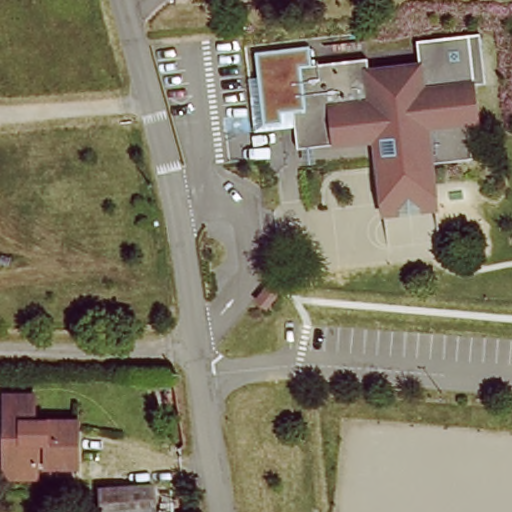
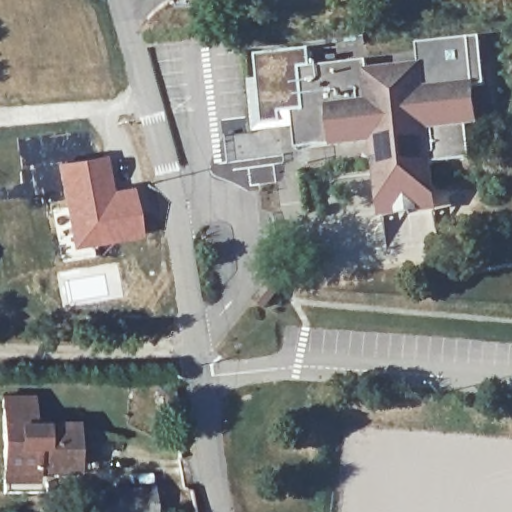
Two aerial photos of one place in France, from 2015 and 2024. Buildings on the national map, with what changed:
unchanged [(375,141),(297,150),(293,112),(305,111),(299,68),(366,60),(368,72),(419,66),(416,42),(479,35),(485,84),(472,85),(477,122),(467,123),(472,159),(431,164),(431,169),(379,175),(375,141)]
new [(108,154),(114,188),(134,185),(142,236),(72,249),(56,161),(108,154)]
new [(275,162),(279,183),(251,186),(247,166),(275,162)]
unchanged [(431,169),(436,210),(384,216),(379,175),(431,169)]
unchanged [(45,483),(45,473),(45,467),(33,466),(33,474),(33,483),(1,483),(1,472),(2,401),(31,401),(31,426),(78,429),(77,475),(77,485),(45,483)]
unchanged [(152,510),(103,511),(102,484),(151,483),(152,510)]

